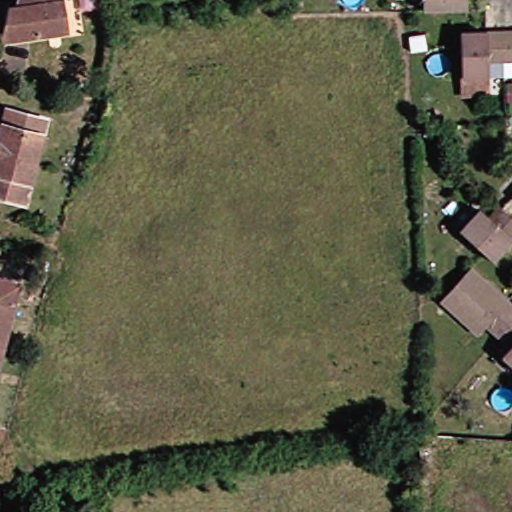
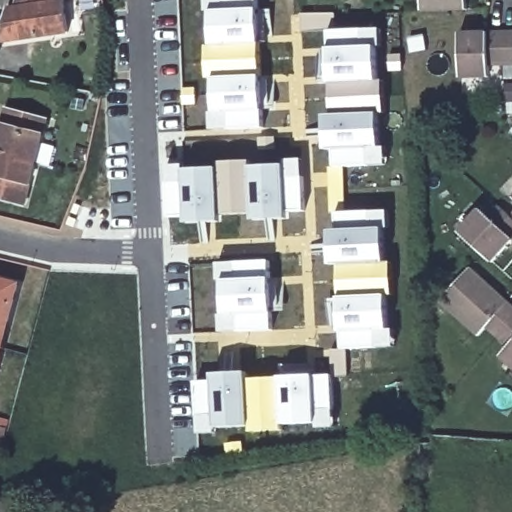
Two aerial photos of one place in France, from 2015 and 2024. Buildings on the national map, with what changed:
unchanged [(0,42),(9,6),(48,0),(62,0),(68,33),(0,42)]
unchanged [(19,0),(29,0),(19,2),(19,0)]
new [(212,131),(211,112),(214,112),(213,79),(208,79),(207,45),(212,45),(210,12),(206,12),(206,0),(259,0),(265,129),(212,131)]
unchanged [(425,14),(425,0),(466,0),(466,14),(425,14)]
new [(381,47),(376,46),(378,81),(385,80),(385,114),(379,114),(381,147),(387,147),(388,165),(334,167),(334,151),(327,152),(325,116),(332,116),(328,49),(327,30),(302,32),(301,14),(337,13),(338,29),(382,27),(381,47)]
unchanged [(482,67),(482,80),(458,81),(458,37),(484,36),(487,36),(499,36),(512,36),(512,67),(500,67),(482,67)]
unchanged [(15,205),(0,201),(0,110),(37,121),(15,205)]
new [(304,211),(287,212),(288,220),(251,222),(252,214),(221,215),(221,222),(184,225),(184,217),(168,218),(165,165),(183,165),(184,170),(219,168),(219,162),(251,161),(251,166),(285,165),(285,159),(304,158),(304,211)]
unchanged [(512,196),(512,204),(508,200),(512,196)]
new [(389,229),(384,229),(386,262),(392,262),(393,296),(387,296),(389,329),(395,328),(395,347),(342,350),(342,333),(340,265),(331,266),(329,230),(337,230),(336,212),(389,211),(389,229)]
unchanged [(481,256),(457,234),(475,215),(484,222),(495,211),(506,221),(512,215),(512,240),(490,263),(481,256)]
new [(270,277),(273,311),(274,331),(221,332),(220,315),(226,315),(223,281),(218,281),(217,262),(270,260),(270,277)]
unchanged [(512,373),(499,361),(507,352),(495,342),(482,330),(474,338),(437,304),(466,272),(503,306),(512,314),(512,373)]
unchanged [(14,284),(0,339),(0,280),(14,284)]
new [(336,428),(317,428),(317,423),(285,425),(285,431),(251,433),(251,426),(218,429),(218,433),(199,434),(195,382),(213,381),(213,373),(249,372),(249,378),(315,374),(334,373),(336,428)]

